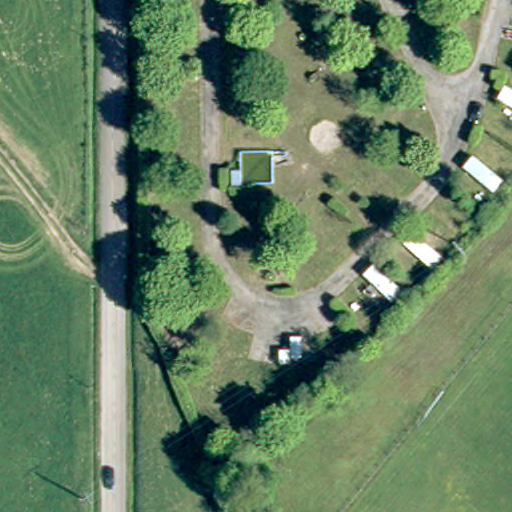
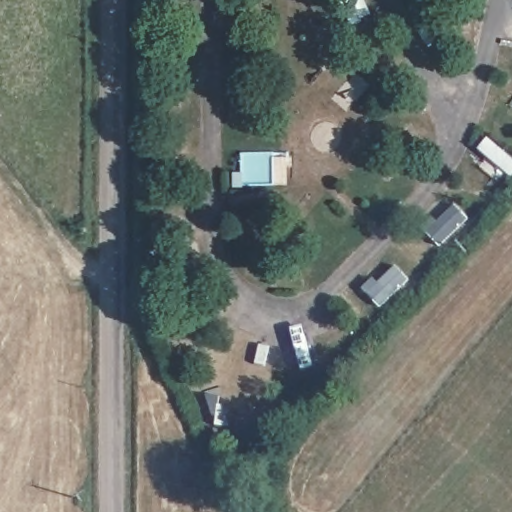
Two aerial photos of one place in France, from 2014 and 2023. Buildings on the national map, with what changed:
[]

